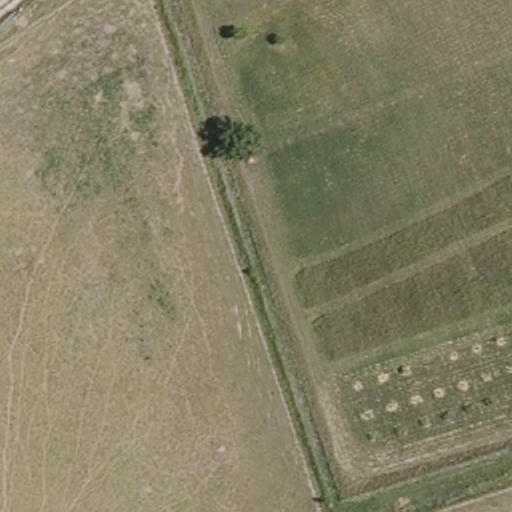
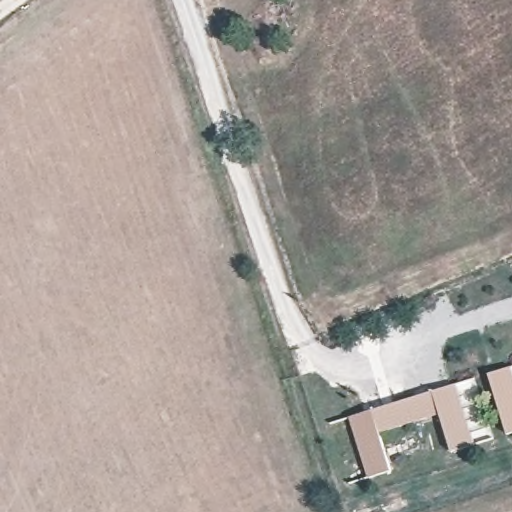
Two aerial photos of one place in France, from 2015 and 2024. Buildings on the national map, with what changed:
new [(510,366),(512,370),(512,435),(510,435),(490,373),(510,366)]
new [(475,445),(451,452),(439,416),(380,433),(392,471),(368,478),(350,417),(455,385),(475,445)]

